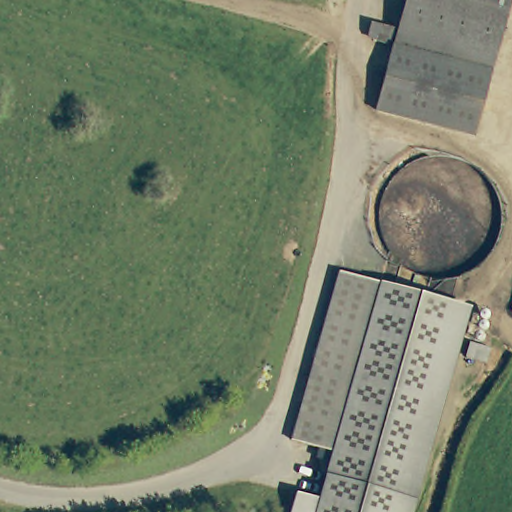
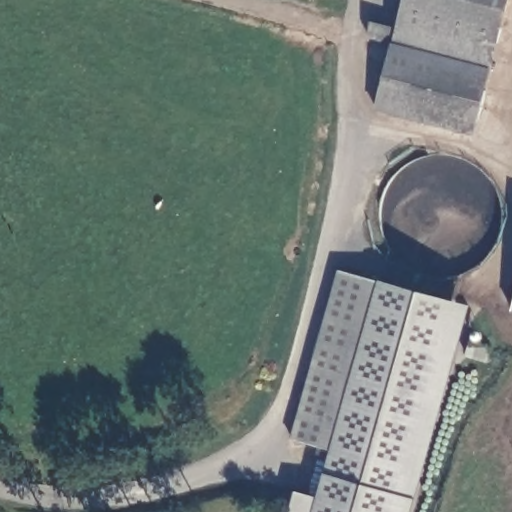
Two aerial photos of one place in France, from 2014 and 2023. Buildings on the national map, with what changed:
unchanged [(504,0),(498,26),(402,1),(402,0),(504,0)]
unchanged [(498,26),(479,103),(471,133),(373,108),(388,42),(373,38),(374,36),(364,33),(367,21),(394,28),(402,1),(498,26)]
unchanged [(380,281),(334,450),(294,439),(340,270),(380,281)]
unchanged [(451,300),(395,512),(318,512),(334,450),(380,281),(451,300)]

